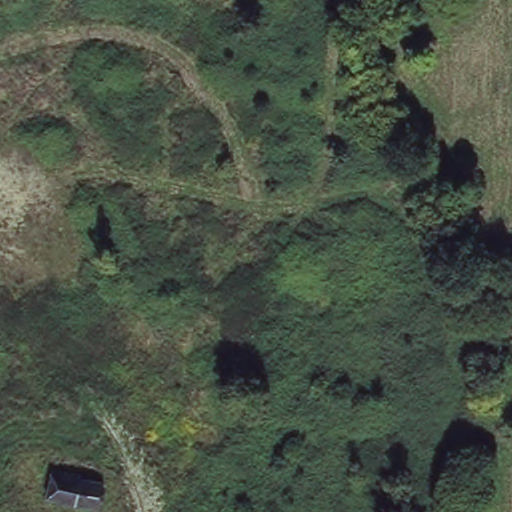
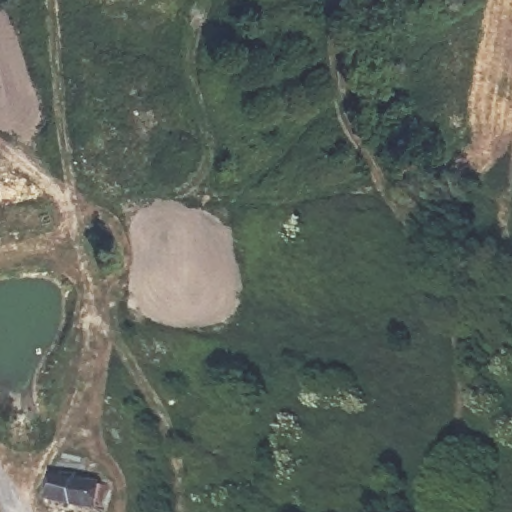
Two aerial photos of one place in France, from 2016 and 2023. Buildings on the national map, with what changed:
unchanged [(90,468),(83,479),(115,488),(110,512),(103,512),(49,499),(53,463),(90,468)]

